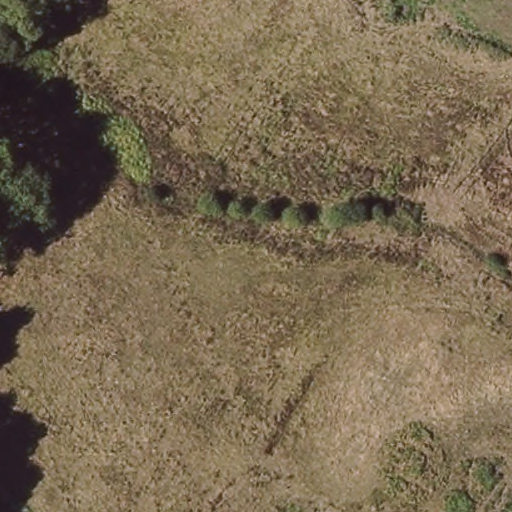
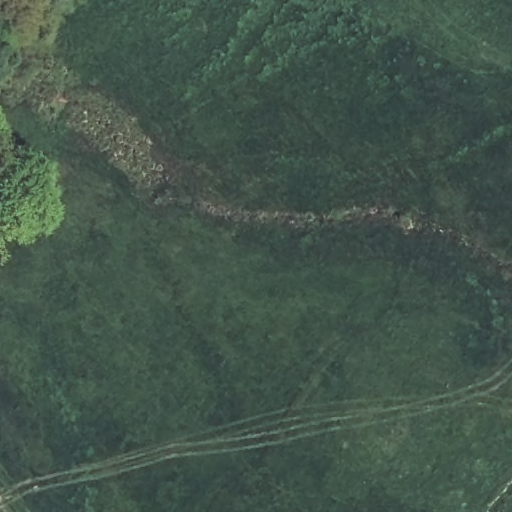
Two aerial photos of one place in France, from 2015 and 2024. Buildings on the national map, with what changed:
[]

